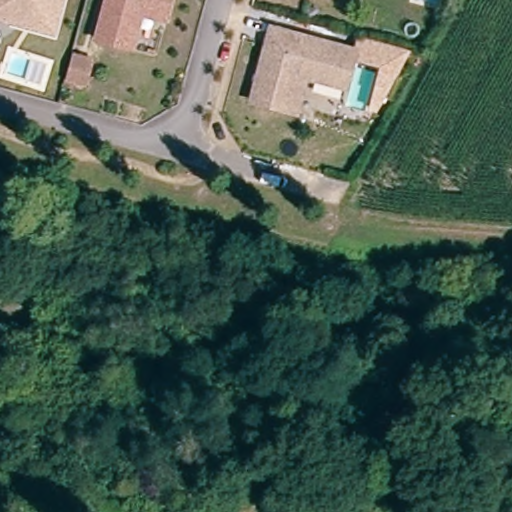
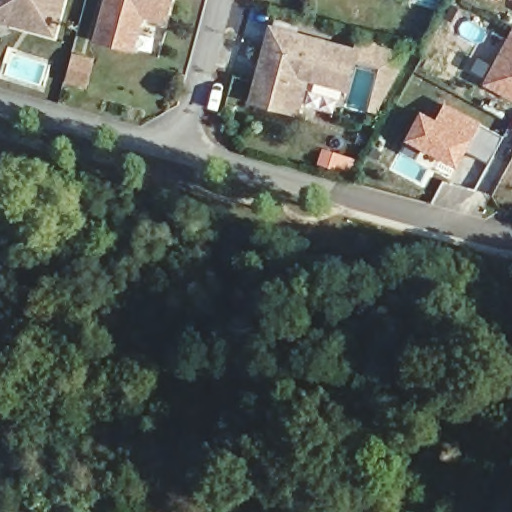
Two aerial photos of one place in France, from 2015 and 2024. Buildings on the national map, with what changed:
unchanged [(0,13),(0,0),(61,0),(53,27),(13,16),(0,13)]
unchanged [(163,16),(139,9),(129,44),(94,34),(104,0),(168,0),(163,16)]
unchanged [(349,34),(382,43),(384,44),(381,58),(347,49),(337,87),(302,78),(293,112),(248,100),(267,27),(346,48),(349,34)]
new [(477,57),(491,64),(512,28),(512,101),(481,83),(483,78),(469,70),(477,57)]
unchanged [(69,74),(69,73),(75,49),(94,55),(88,79),(69,74)]
new [(488,164),(466,153),(453,178),(433,169),(439,158),(404,138),(421,108),(436,116),(445,100),(483,120),(481,124),(502,136),(488,164)]
new [(322,146),(357,159),(351,175),(316,164),(322,146)]

